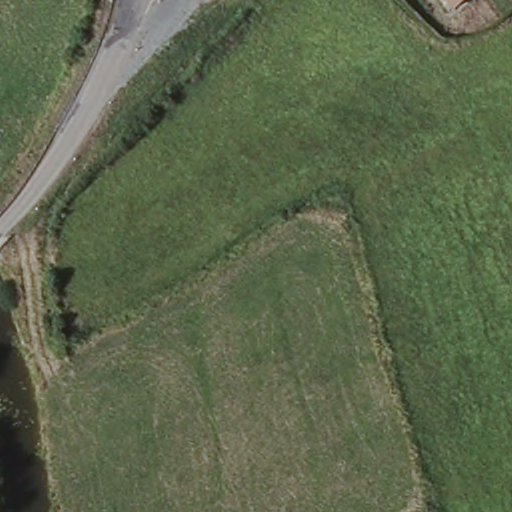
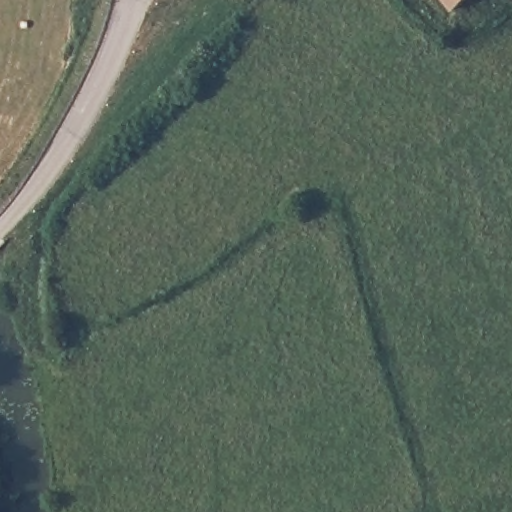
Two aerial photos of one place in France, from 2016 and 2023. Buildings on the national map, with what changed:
unchanged [(457,11),(447,0),(470,0),(457,11)]

